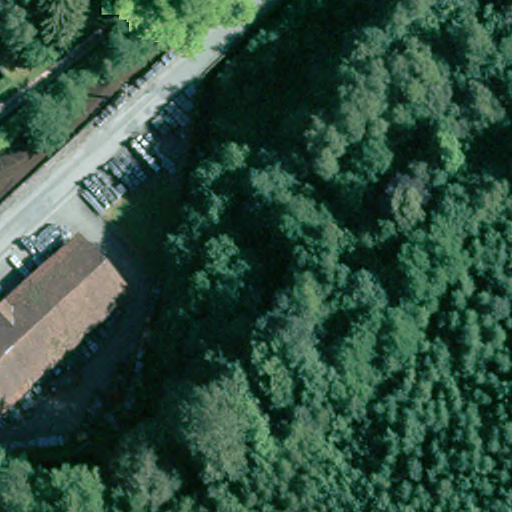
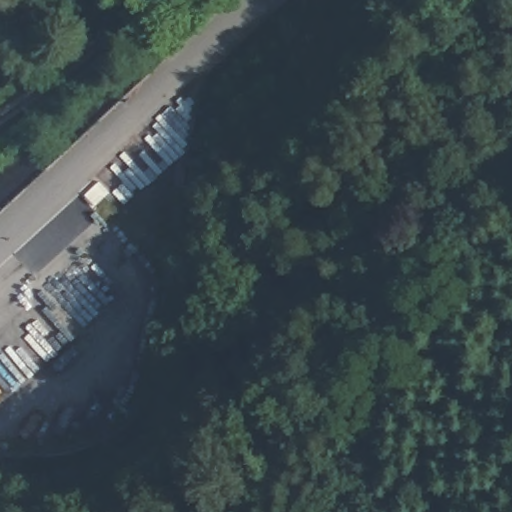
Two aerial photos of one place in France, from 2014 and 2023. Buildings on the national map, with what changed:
unchanged [(90,246),(127,287),(111,302),(74,261),(90,246)]
unchanged [(111,302),(26,379),(0,351),(0,329),(74,261),(111,302)]
unchanged [(0,351),(26,379),(0,403),(0,351)]

